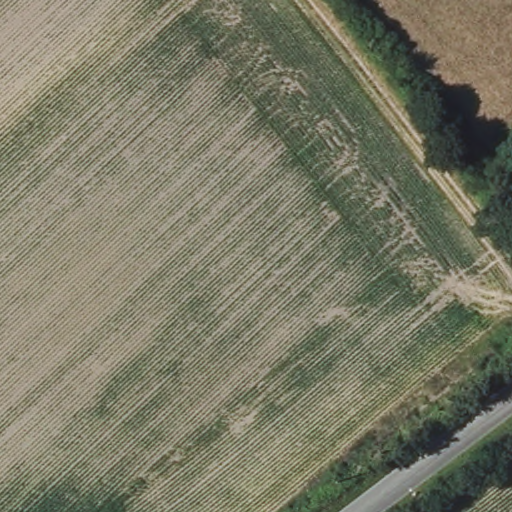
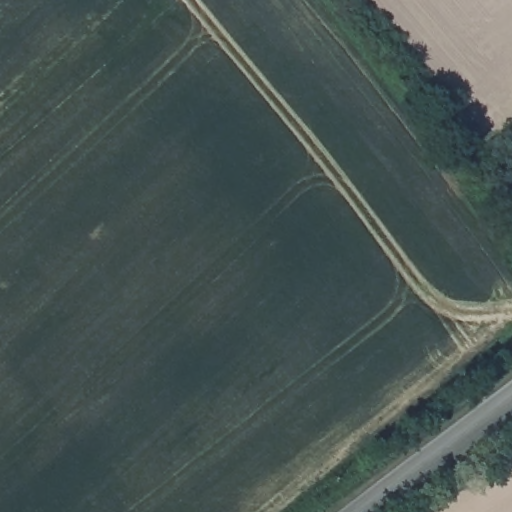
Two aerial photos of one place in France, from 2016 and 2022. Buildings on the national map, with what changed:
[]

